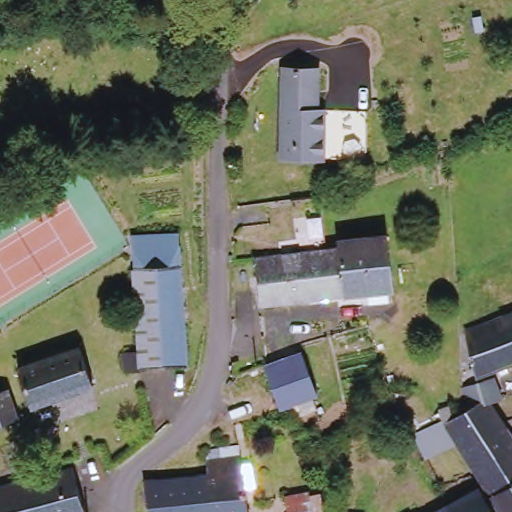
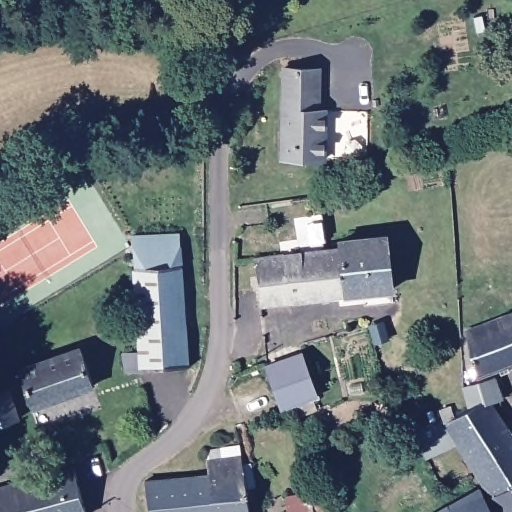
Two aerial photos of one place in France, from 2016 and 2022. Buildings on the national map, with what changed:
unchanged [(282,161),(282,72),(317,72),(317,112),(325,112),(325,161),(282,161)]
unchanged [(127,374),(125,355),(143,354),(135,239),(180,235),(188,367),(127,374)]
unchanged [(385,235),(392,289),(367,293),(359,239),(385,235)]
unchanged [(367,293),(260,307),(254,260),(343,248),(342,241),(359,239),(367,293)]
unchanged [(512,365),(478,378),(468,334),(512,318),(512,365)]
unchanged [(20,370),(82,348),(94,387),(32,408),(24,384),(20,370)]
unchanged [(303,354),(317,397),(282,409),(270,374),(268,366),(303,354)]
unchanged [(447,423),(472,410),(465,389),(495,379),(504,399),(492,402),(512,436),(512,512),(503,512),(458,443),(425,457),(417,439),(415,434),(445,419),(447,423)]
unchanged [(18,424),(0,430),(0,397),(8,394),(18,424)]
unchanged [(204,471),(202,457),(237,451),(239,468),(219,469),(222,501),(205,503),(206,512),(147,512),(142,477),(204,471)]
unchanged [(75,468),(88,512),(0,512),(0,488),(75,468)]
unchanged [(246,512),(206,512),(205,503),(222,501),(219,469),(239,468),(246,512)]
unchanged [(480,488),(493,512),(439,512),(480,488)]
unchanged [(283,498),(307,494),(309,512),(285,512),(283,498)]

